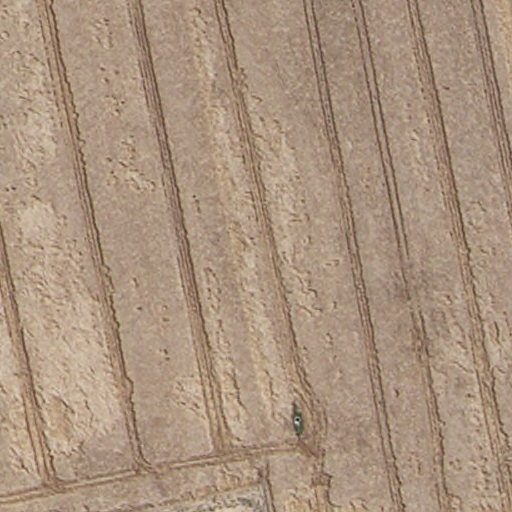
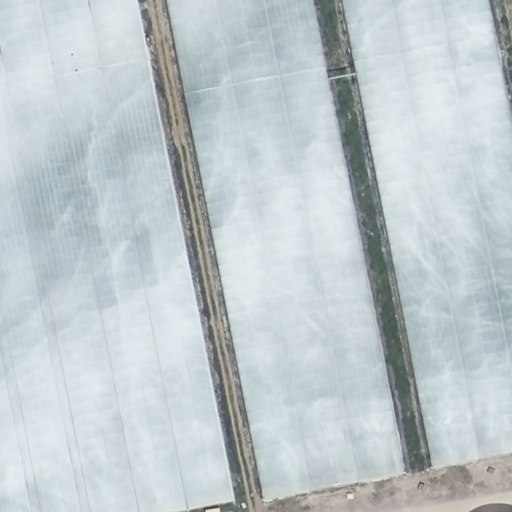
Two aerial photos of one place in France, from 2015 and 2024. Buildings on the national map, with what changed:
new [(216,512),(0,512),(0,0),(139,0),(237,508),(216,512)]
new [(412,472),(261,497),(163,0),(320,0),(412,472)]
new [(512,456),(433,472),(339,0),(497,0),(512,80),(512,456)]

